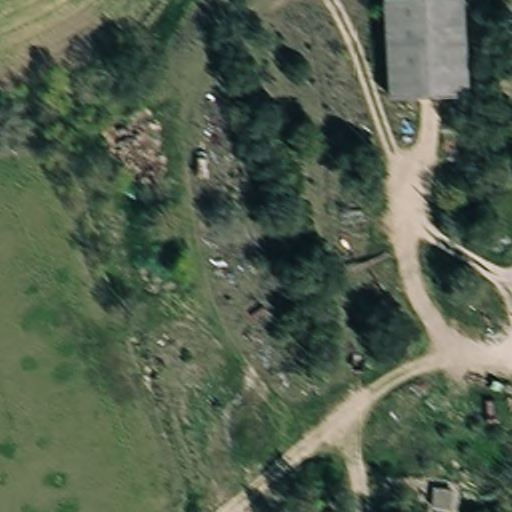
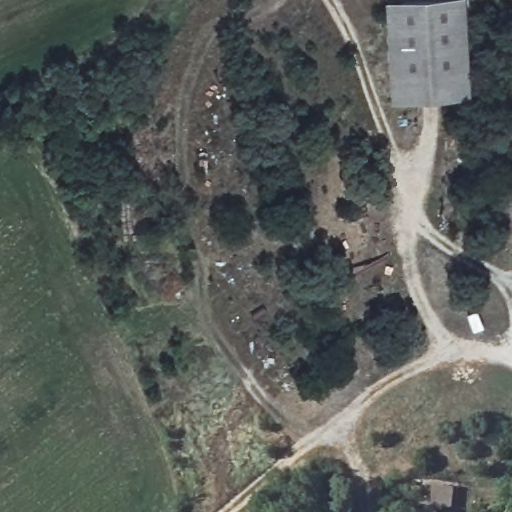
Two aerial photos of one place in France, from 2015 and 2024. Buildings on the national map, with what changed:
unchanged [(467,102),(385,105),(380,0),(461,0),(467,102)]

